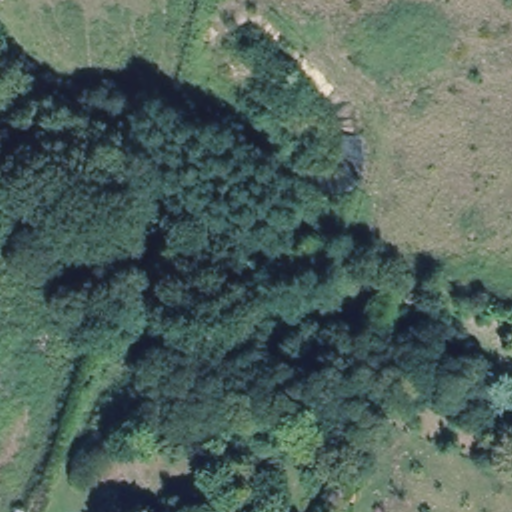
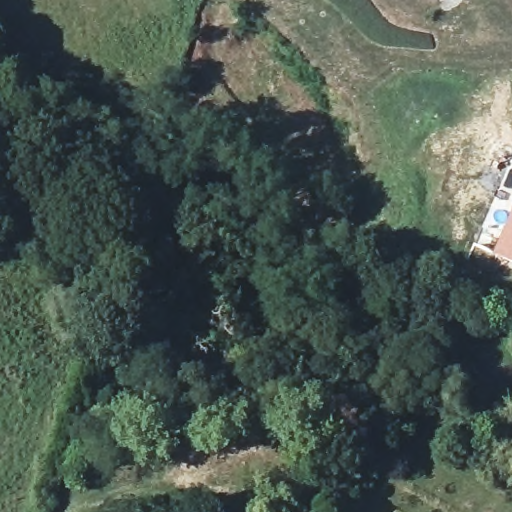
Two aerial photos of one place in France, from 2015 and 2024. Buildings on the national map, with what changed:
new [(493,259),(512,214),(512,266),(493,259)]

